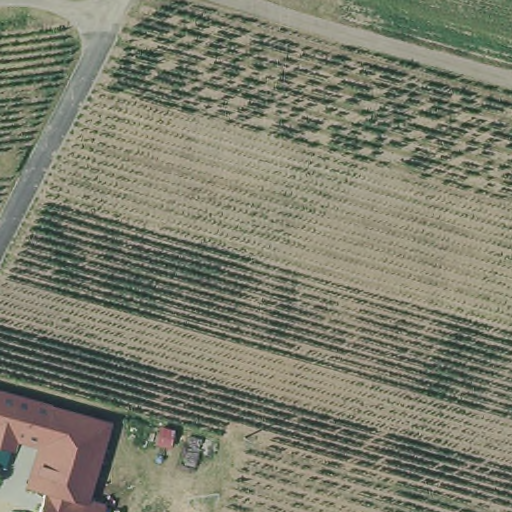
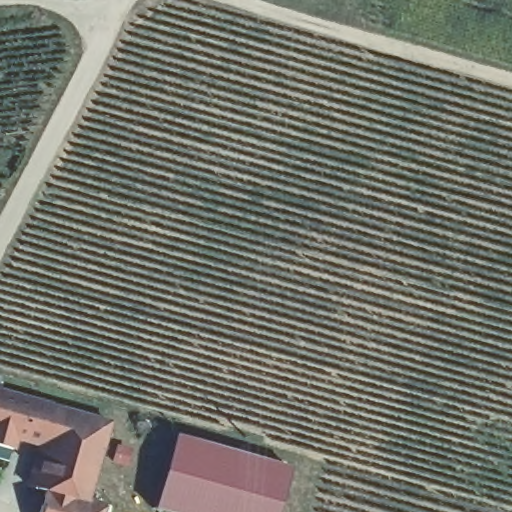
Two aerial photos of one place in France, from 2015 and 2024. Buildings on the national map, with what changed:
unchanged [(12,436),(8,448),(0,446),(0,393),(48,405),(38,443),(12,436)]
unchanged [(105,421),(84,499),(101,504),(99,512),(37,512),(43,490),(26,485),(38,443),(48,405),(105,421)]
new [(289,470),(279,512),(155,512),(178,440),(289,470)]

